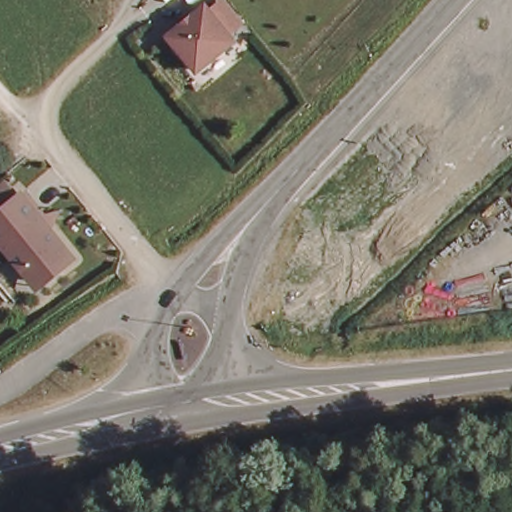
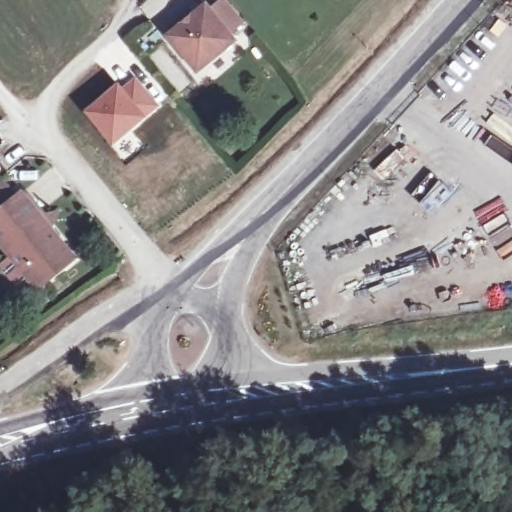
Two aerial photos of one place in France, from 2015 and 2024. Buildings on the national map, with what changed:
unchanged [(239,38),(195,72),(167,37),(208,1),(239,38)]
new [(118,79),(122,84),(134,74),(160,105),(111,144),(82,109),(118,79)]
unchanged [(0,242),(0,215),(22,197),(74,261),(45,285),(39,290),(26,274),(0,242)]

